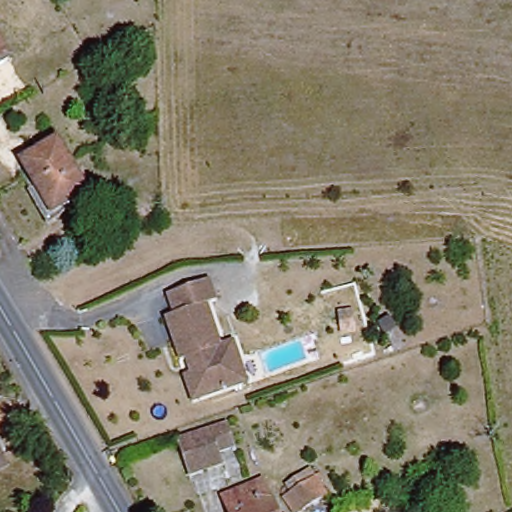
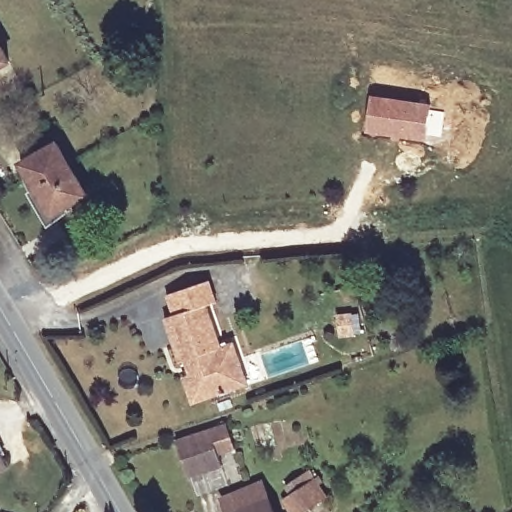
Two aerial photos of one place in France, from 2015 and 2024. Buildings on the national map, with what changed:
unchanged [(0,65),(0,35),(13,57),(0,65)]
new [(370,94),(430,104),(430,108),(445,111),(440,140),(425,138),(425,142),(364,132),(370,94)]
unchanged [(57,217),(27,165),(61,145),(75,137),(85,155),(72,163),(92,197),(57,217)]
unchanged [(240,360),(252,355),(262,377),(192,405),(160,326),(169,322),(160,302),(202,286),(210,307),(207,308),(220,342),(232,338),(240,360)]
unchanged [(361,335),(346,337),(344,317),(359,315),(361,335)]
unchanged [(231,425),(240,450),(225,455),(229,465),(196,477),(184,442),(231,425)]
unchanged [(0,471),(0,443),(11,466),(0,471)]
unchanged [(325,481),(320,484),(327,495),(302,512),(298,512),(288,497),(295,492),(289,484),(307,472),(312,480),(321,475),(325,481)]
unchanged [(230,500),(267,484),(279,512),(235,512),(230,500)]

